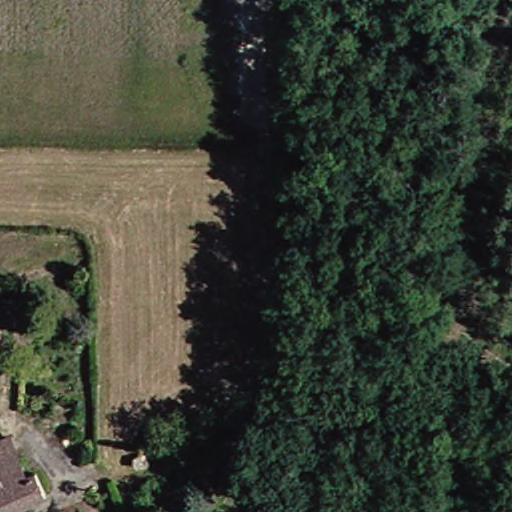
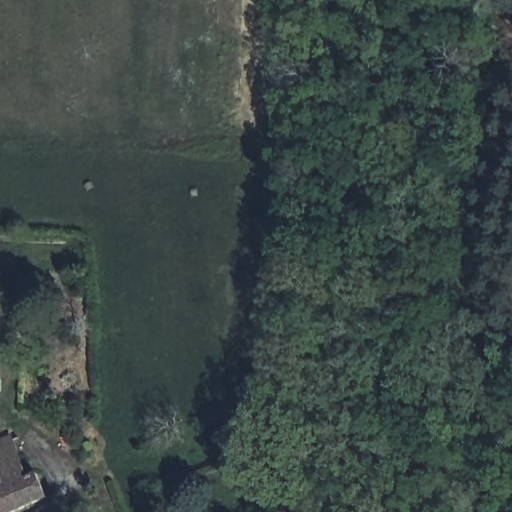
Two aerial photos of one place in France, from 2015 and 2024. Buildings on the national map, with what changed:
unchanged [(49,495),(10,512),(0,512),(0,435),(12,431),(18,448),(27,471),(37,469),(49,495)]

